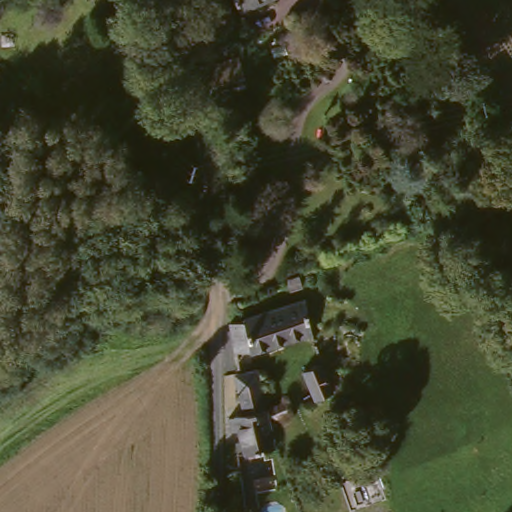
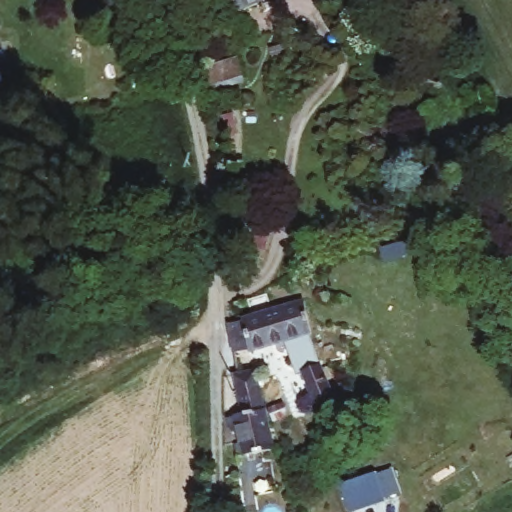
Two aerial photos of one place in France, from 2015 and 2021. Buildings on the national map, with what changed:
unchanged [(237,0),(286,0),(243,15),(237,0)]
unchanged [(240,62),(247,85),(228,91),(226,85),(211,89),(206,72),(240,62)]
unchanged [(260,352),(259,347),(244,351),(237,327),(254,321),(253,317),(311,300),(321,332),(260,352)]
unchanged [(264,465),(261,457),(251,460),(249,452),(243,454),(233,416),(242,413),(235,385),(231,377),(255,371),(262,397),(278,461),(264,465)]
new [(340,486),(377,473),(387,502),(355,512),(349,512),(340,486)]

